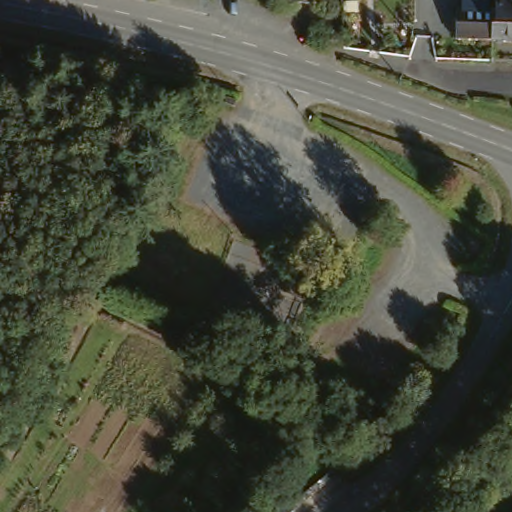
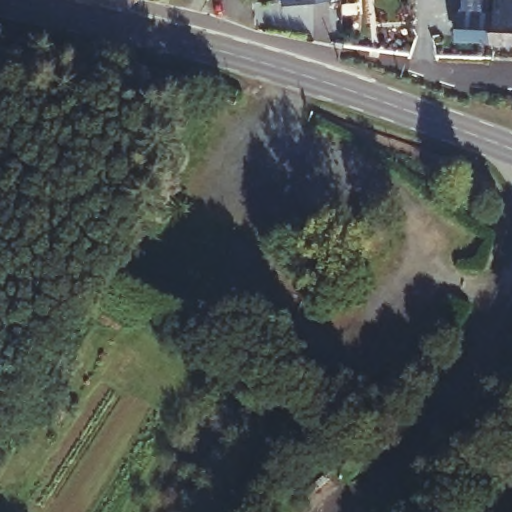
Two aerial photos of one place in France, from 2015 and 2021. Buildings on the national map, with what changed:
unchanged [(295,0),(288,2),(288,0),(295,0)]
unchanged [(458,32),(459,11),(459,0),(499,0),(498,34),(458,32)]
unchanged [(499,0),(512,0),(512,35),(498,34),(499,0)]

